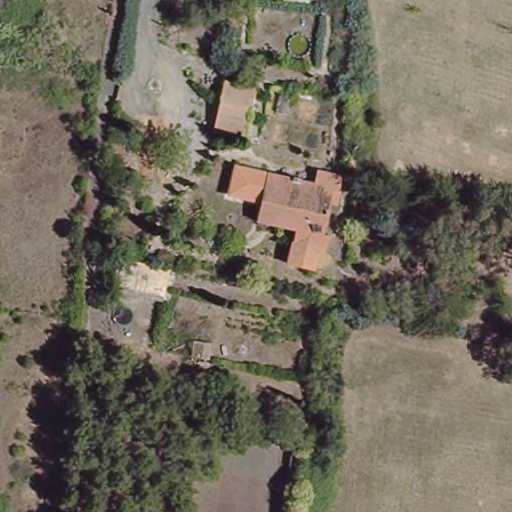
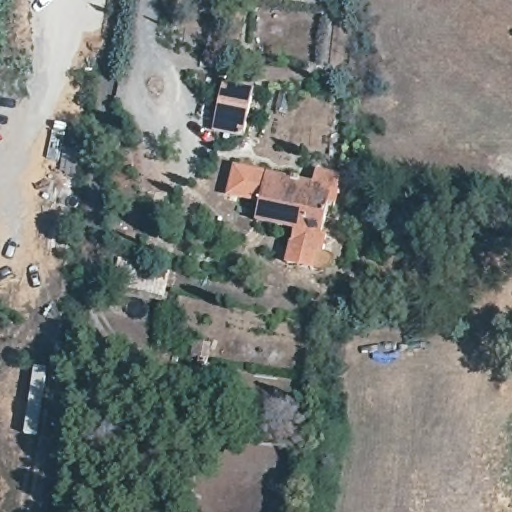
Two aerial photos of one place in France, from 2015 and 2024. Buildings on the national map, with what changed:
unchanged [(258,87),(250,141),(216,131),(223,80),(258,87)]
unchanged [(233,194),(242,161),(318,177),(321,167),(345,172),(342,189),(277,175),(271,201),(233,194)]
unchanged [(308,230),(267,221),(271,201),(277,175),(342,189),(331,236),(326,263),(302,257),(308,230)]
unchanged [(111,256),(168,272),(159,302),(107,290),(111,256)]

